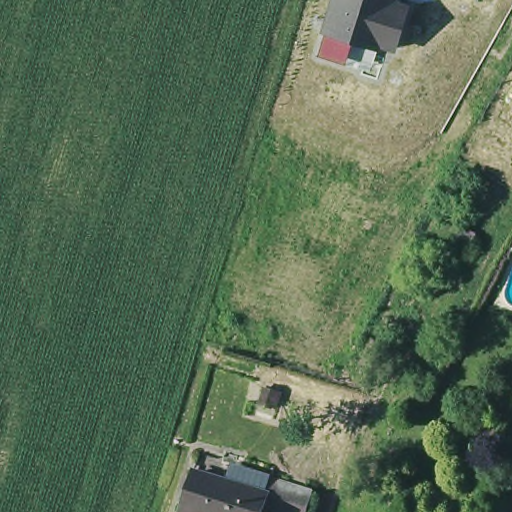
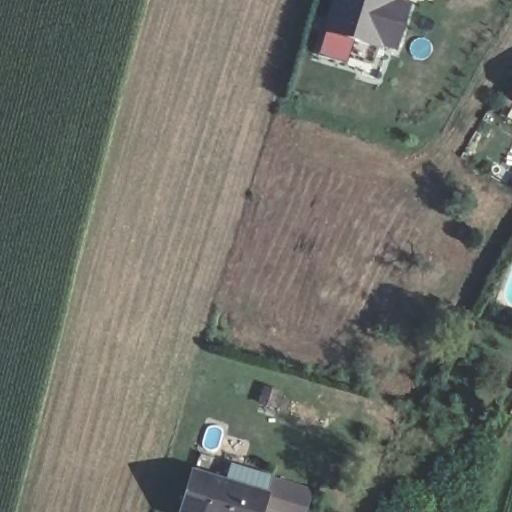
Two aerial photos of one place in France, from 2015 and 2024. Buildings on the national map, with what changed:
unchanged [(331,0),(390,0),(389,5),(404,9),(399,28),(392,51),(376,47),(374,52),(344,43),(321,35),(324,26),(331,0)]
unchanged [(183,474),(256,496),(253,507),(252,512),(172,512),(183,474)]
unchanged [(303,494),(296,512),(270,512),(253,507),(256,496),(263,482),(303,494)]

